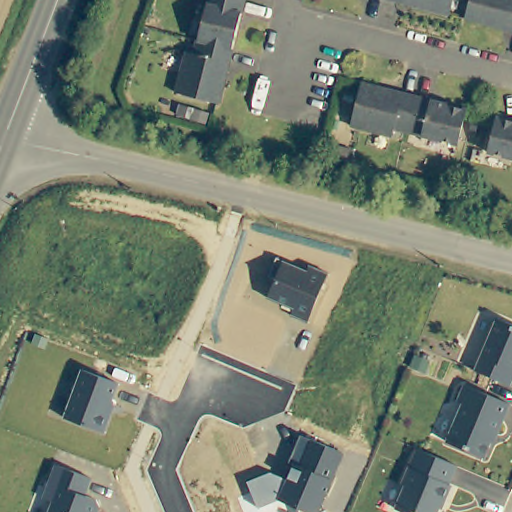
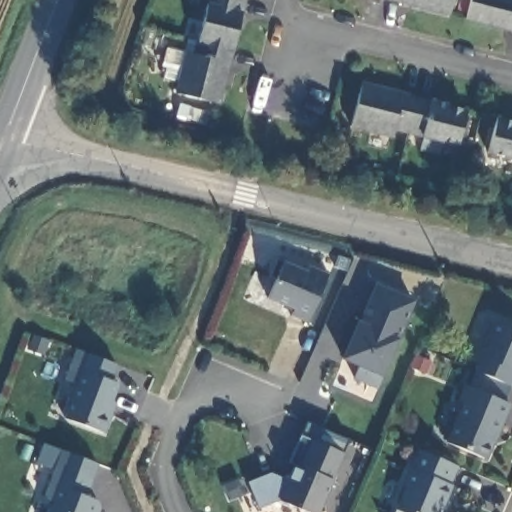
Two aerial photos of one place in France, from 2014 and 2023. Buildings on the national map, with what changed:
unchanged [(241,0),(210,121),(169,109),(183,51),(190,52),(203,0),(241,0)]
unchanged [(386,0),(454,0),(449,16),(386,0)]
unchanged [(471,0),(473,0),(512,10),(512,31),(465,20),(471,0)]
unchanged [(512,0),(512,10),(473,0),(512,0)]
unchanged [(469,110),(459,148),(395,132),(393,137),(352,127),(364,82),(469,110)]
unchanged [(512,161),(488,155),(499,117),(512,120),(512,161)]
unchanged [(275,279),(268,276),(276,258),(284,262),(307,271),(309,266),(328,275),(308,323),(291,316),(294,308),(269,297),(275,279)]
new [(418,299),(399,340),(381,378),(376,390),(352,380),(357,368),(338,361),(342,350),(335,347),(347,319),(353,322),(354,318),(358,317),(373,281),(418,299)]
unchanged [(512,325),(512,385),(495,377),(482,372),(505,322),(512,325)]
unchanged [(82,370),(117,384),(111,402),(114,407),(104,433),(64,418),(82,370)]
unchanged [(512,417),(503,437),(501,436),(490,460),(454,444),(471,405),(466,402),(473,387),(512,404),(512,417)]
unchanged [(280,470),(288,478),(293,466),(288,463),(300,437),(312,442),(344,453),(332,482),(332,481),(322,505),(325,510),(321,512),(300,512),(298,507),(279,501),(257,508),(247,482),(280,470)]
unchanged [(455,486),(457,487),(450,503),(448,502),(444,512),(407,512),(402,510),(412,487),(409,486),(424,450),(463,467),(455,486)]
unchanged [(55,465),(66,470),(93,480),(87,497),(95,498),(100,508),(99,512),(48,512),(52,502),(42,497),(55,465)]

